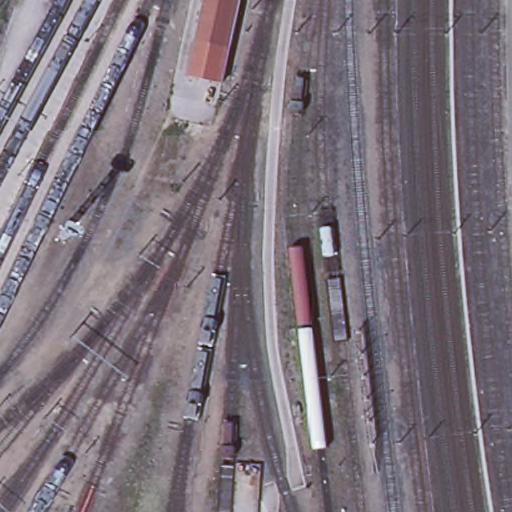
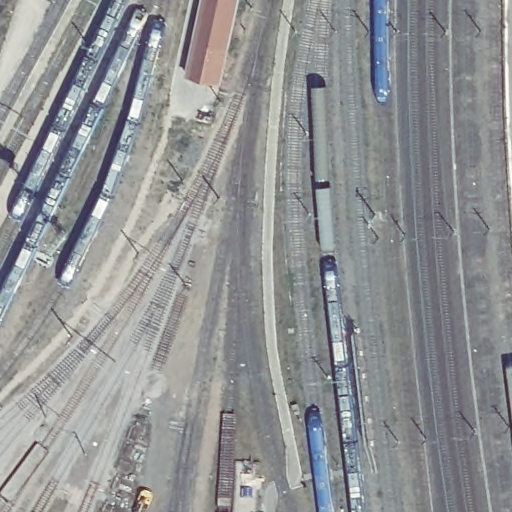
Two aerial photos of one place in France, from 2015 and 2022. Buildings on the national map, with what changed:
unchanged [(196,46),(208,0),(239,0),(227,53),(196,46)]

